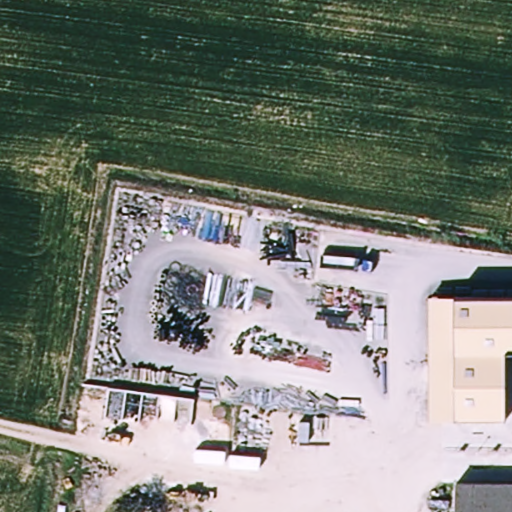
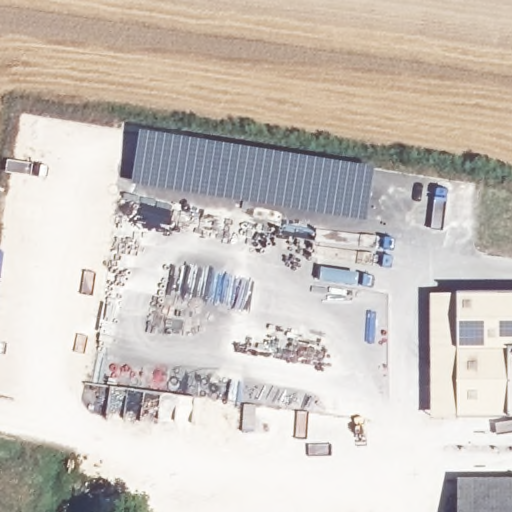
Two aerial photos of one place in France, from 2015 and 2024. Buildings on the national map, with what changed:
new [(133,186),(140,137),(374,174),(367,222),(133,186)]
unchanged [(457,420),(433,420),(431,299),(456,298),(457,420)]
unchanged [(457,420),(456,298),(512,298),(512,351),(509,351),(509,411),(510,418),(505,418),(457,420)]
unchanged [(452,508),(452,483),(453,481),(464,480),(512,479),(512,512),(452,512),(452,508)]

